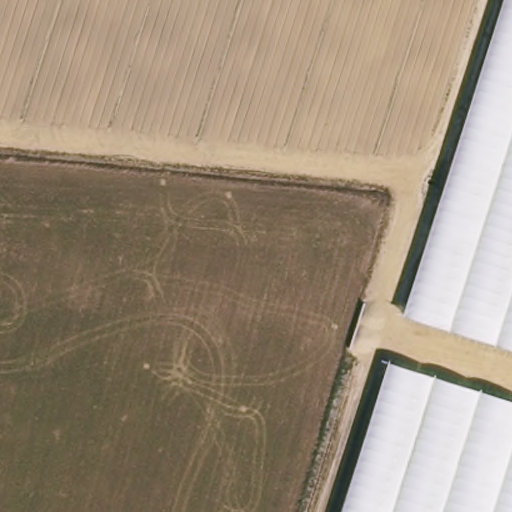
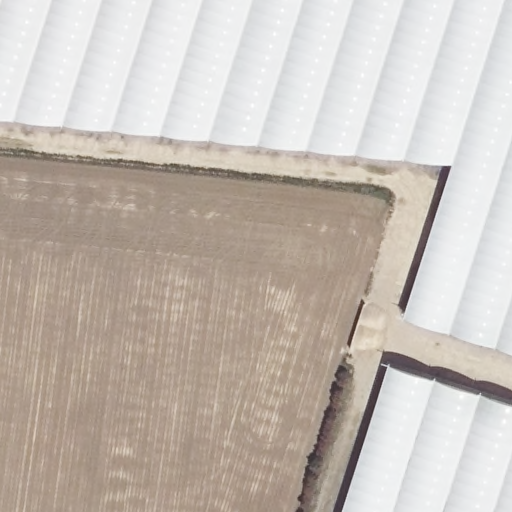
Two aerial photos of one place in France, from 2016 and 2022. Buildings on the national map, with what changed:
new [(0,115),(0,0),(504,0),(454,160),(0,115)]
unchanged [(454,160),(504,0),(512,0),(512,348),(405,313),(454,160)]
unchanged [(512,512),(342,512),(390,362),(512,401),(512,512)]

